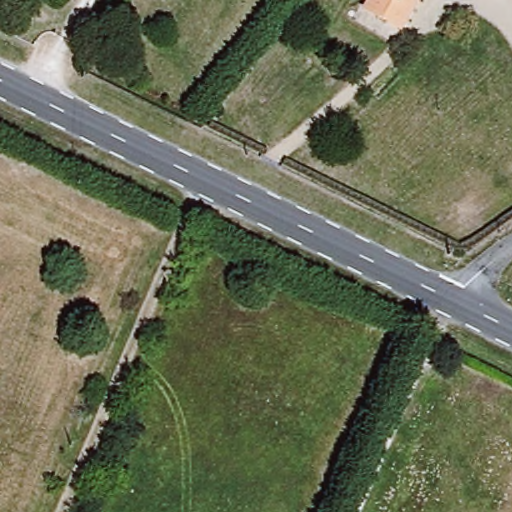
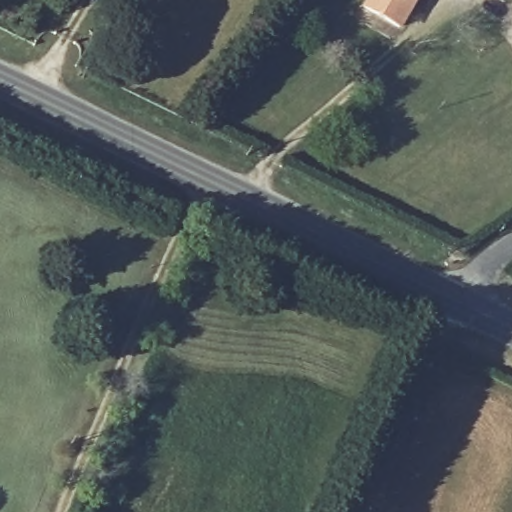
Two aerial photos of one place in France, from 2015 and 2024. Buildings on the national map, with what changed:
unchanged [(393,33),(355,11),(361,0),(411,0),(393,33)]
unchanged [(493,4),(489,0),(496,0),(493,4)]

